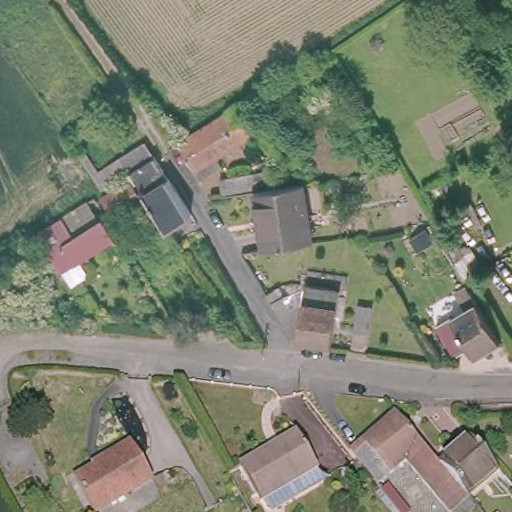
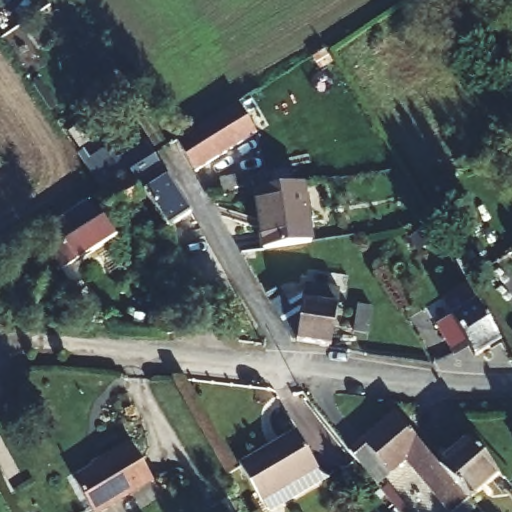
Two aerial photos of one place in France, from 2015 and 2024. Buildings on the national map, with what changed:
unchanged [(177,134),(235,97),(251,126),(192,164),(177,134)]
unchanged [(166,230),(143,195),(113,216),(102,195),(131,177),(128,172),(100,190),(78,155),(85,150),(99,170),(145,142),(155,159),(166,177),(190,216),(166,230)]
unchanged [(259,245),(250,189),(296,181),(306,237),(259,245)]
unchanged [(38,232),(61,219),(64,218),(62,215),(92,197),(95,196),(103,211),(104,212),(98,216),(97,216),(102,217),(116,239),(75,263),(73,261),(62,270),(38,232)]
unchanged [(412,238),(430,227),(451,262),(464,255),(442,220),(465,206),(486,241),(472,250),(485,270),(464,282),(452,263),(435,274),(412,238)]
unchanged [(331,291),(325,331),(293,327),(298,287),(331,291)]
unchanged [(436,320),(452,310),(477,293),(500,332),(476,347),(470,338),(453,348),(436,320)]
unchanged [(435,466),(461,498),(446,510),(401,456),(373,480),(346,446),(391,412),(435,466)]
unchanged [(230,460),(286,425),(307,457),(304,460),(314,470),(285,488),(276,477),(252,492),(230,460)]
unchanged [(435,466),(469,440),(494,471),(461,498),(435,466)]
unchanged [(126,444),(150,480),(98,512),(89,512),(69,480),(126,444)]

